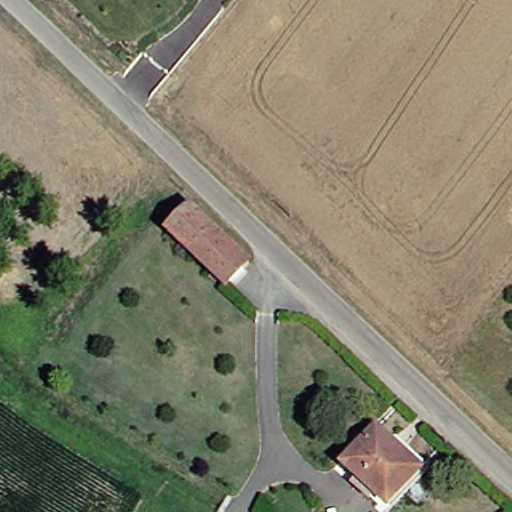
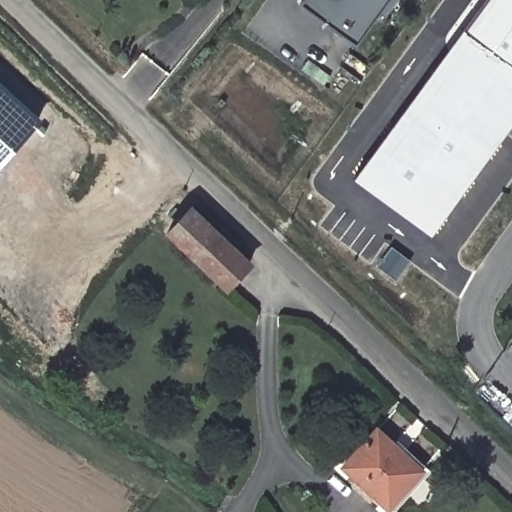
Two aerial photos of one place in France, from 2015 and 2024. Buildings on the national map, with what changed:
new [(390,0),(380,13),(356,45),(300,4),(303,0),(390,0)]
new [(354,177),(484,0),(512,0),(512,124),(432,234),(354,177)]
new [(380,13),(390,0),(397,0),(385,16),(380,13)]
new [(0,81),(43,120),(0,166),(0,81)]
unchanged [(161,227),(186,202),(245,258),(220,283),(161,227)]
unchanged [(333,460),(366,425),(382,439),(386,435),(414,461),(403,472),(377,500),(333,460)]

